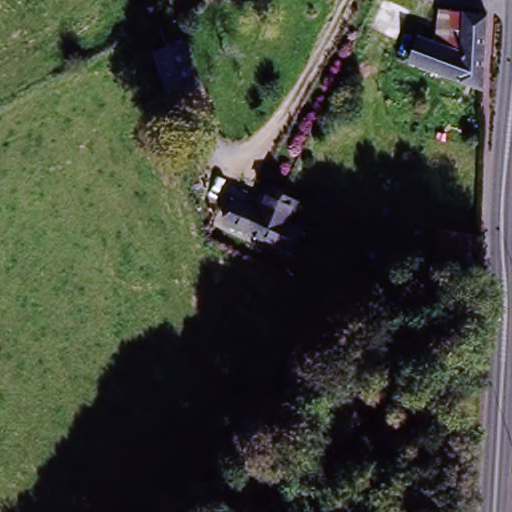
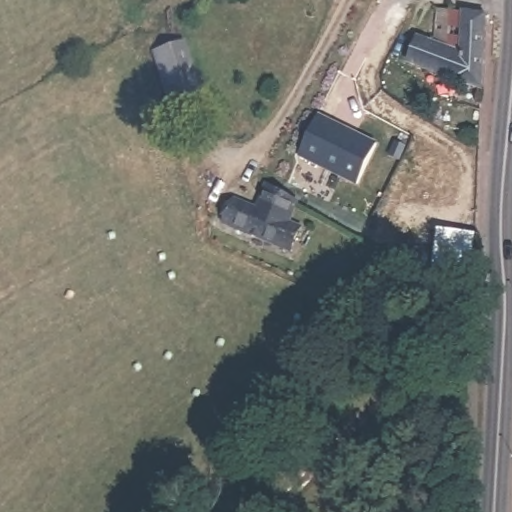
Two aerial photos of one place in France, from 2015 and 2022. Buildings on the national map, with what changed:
demolished [(390,0),(409,9),(396,35),(370,23),(382,0),(390,0)]
unchanged [(485,85),(418,66),(414,65),(421,39),(435,44),(443,0),(446,0),(469,6),(489,13),(485,86),(485,85)]
unchanged [(173,114),(158,58),(188,49),(205,104),(173,114)]
new [(378,143),(358,187),(298,158),(320,115),(378,143)]
unchanged [(300,204),(290,224),(303,230),(291,254),(228,224),(240,200),(259,209),(269,189),(280,194),(283,196),(300,204)]
unchanged [(446,233),(465,238),(457,268),(449,267),(447,273),(437,269),(446,233)]

